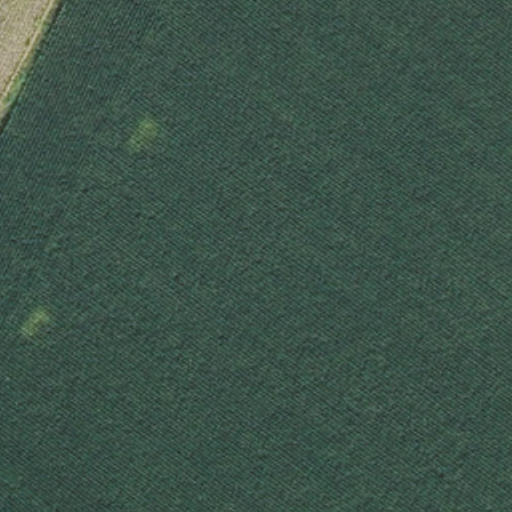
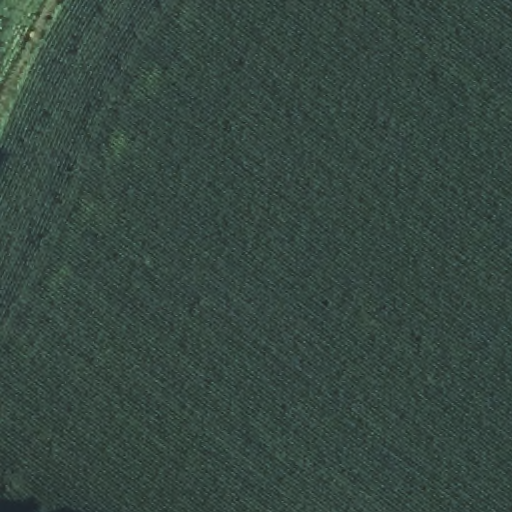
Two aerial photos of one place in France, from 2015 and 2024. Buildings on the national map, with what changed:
[]

